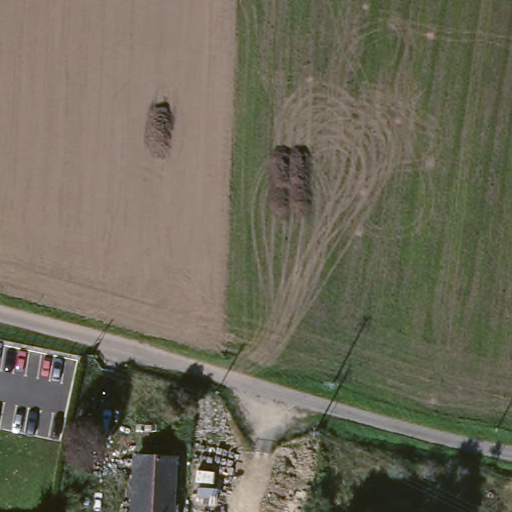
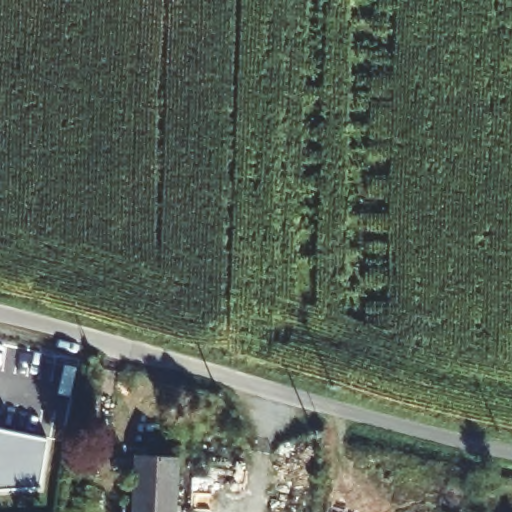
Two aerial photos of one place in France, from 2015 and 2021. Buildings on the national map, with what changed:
new [(48,440),(40,487),(0,490),(0,430),(48,440)]
unchanged [(134,512),(137,465),(174,467),(171,512),(134,512)]

